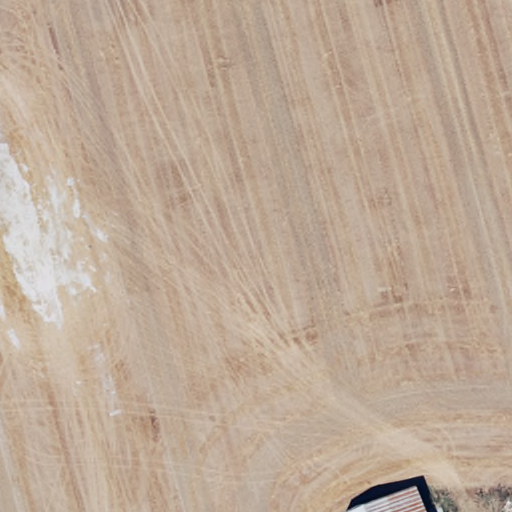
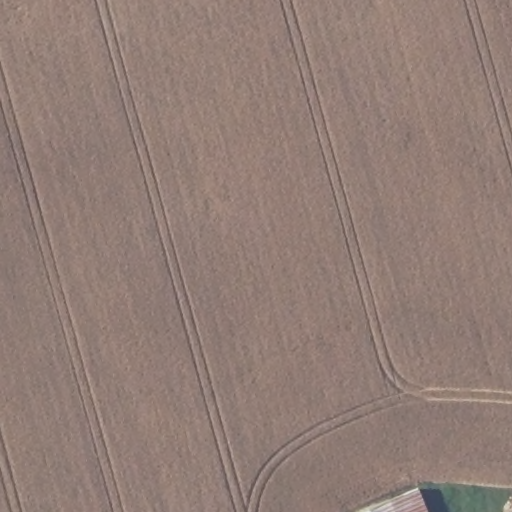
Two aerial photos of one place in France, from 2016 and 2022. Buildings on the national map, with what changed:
unchanged [(426,512),(373,512),(418,493),(426,512)]

